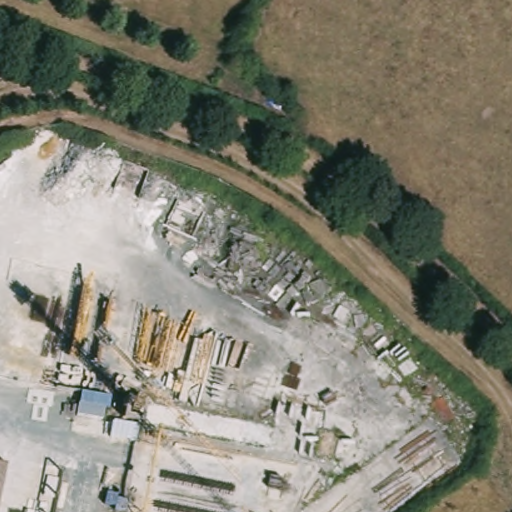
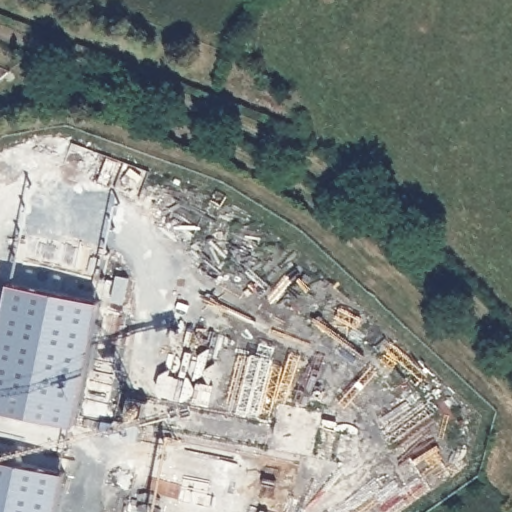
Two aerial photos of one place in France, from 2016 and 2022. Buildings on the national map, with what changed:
new [(0,407),(0,321),(9,281),(100,300),(75,424),(0,407)]
new [(0,512),(0,456),(65,469),(56,512),(0,512)]

